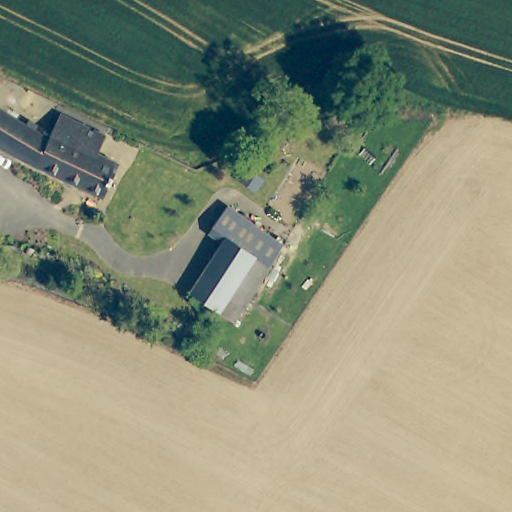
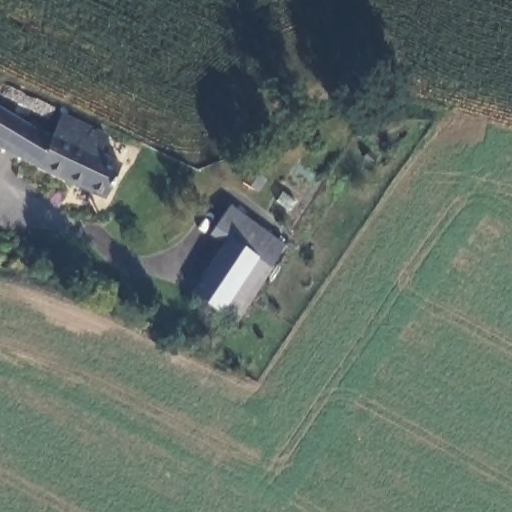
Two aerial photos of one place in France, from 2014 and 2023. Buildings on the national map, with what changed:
unchanged [(49,133),(62,108),(105,134),(99,150),(123,162),(108,197),(42,169),(0,143),(0,105),(49,133)]
unchanged [(260,281),(238,316),(195,289),(225,241),(229,234),(215,225),(230,202),(244,211),(287,237),(260,281)]

